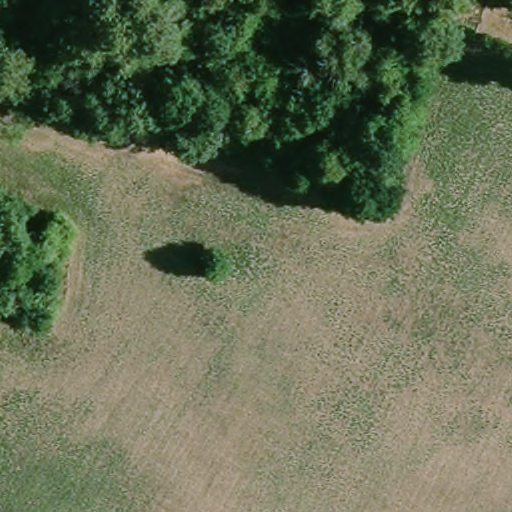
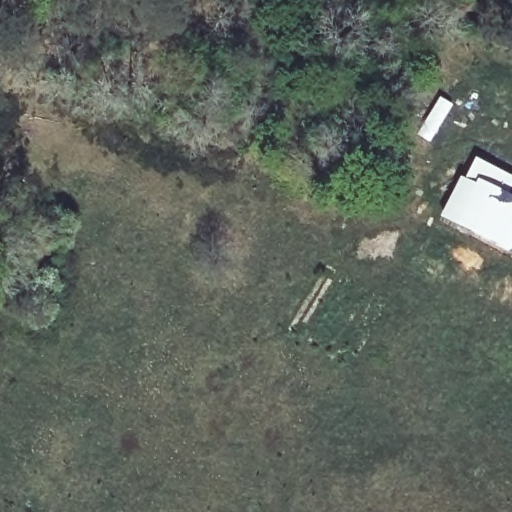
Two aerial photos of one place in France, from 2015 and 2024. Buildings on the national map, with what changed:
new [(439,95),(454,104),(431,143),(416,135),(439,95)]
new [(463,177),(474,156),(512,176),(512,185),(508,195),(512,197),(512,246),(509,252),(438,216),(460,175),(463,177)]

